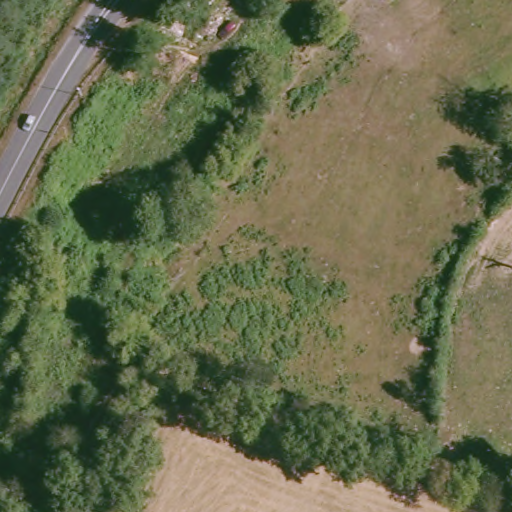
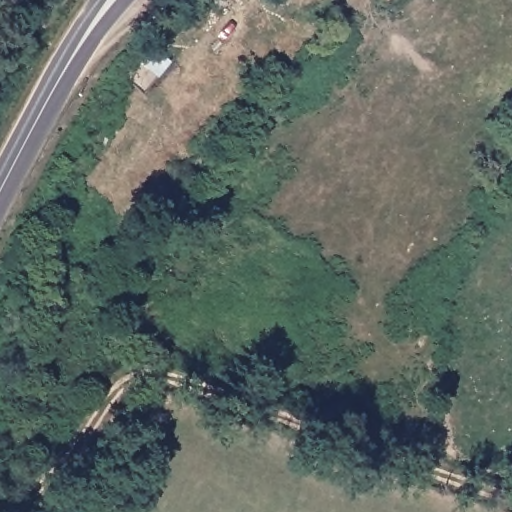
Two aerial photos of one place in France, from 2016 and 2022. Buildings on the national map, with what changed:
unchanged [(232,0),(235,0),(234,1),(232,0)]

